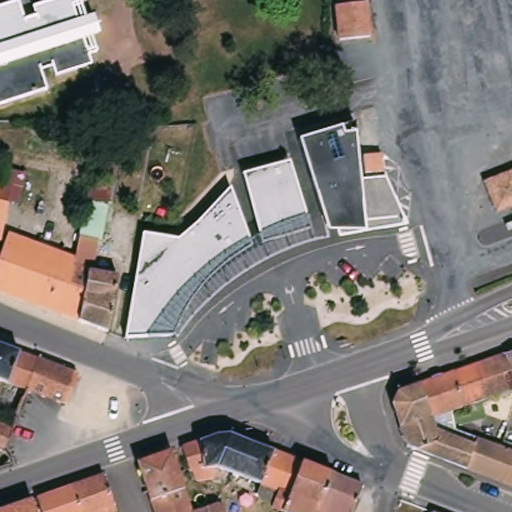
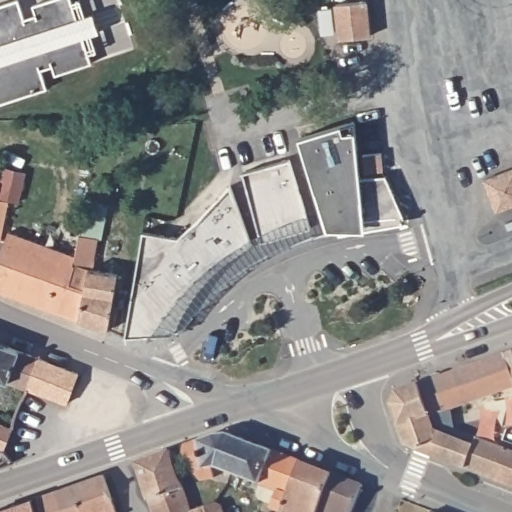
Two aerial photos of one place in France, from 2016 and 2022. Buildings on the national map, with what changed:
unchanged [(26,4),(42,0),(67,0),(68,1),(72,0),(76,0),(81,14),(87,12),(95,33),(87,35),(92,51),(84,54),(87,64),(50,76),(47,68),(37,71),(44,89),(0,102),(0,4),(12,0),(14,0),(16,8),(19,17),(30,14),(26,4)]
unchanged [(336,5),(366,1),(370,36),(340,39),(336,5)]
unchanged [(357,120),(360,177),(386,175),(408,223),(343,235),(340,229),(328,229),(300,138),(357,120)]
unchanged [(179,238),(234,184),(250,239),(260,235),(244,170),(292,158),(310,225),(290,230),(270,237),(248,243),(233,253),(220,264),(207,278),(197,289),(189,303),(181,315),(175,333),(126,334),(144,232),(179,238)]
unchanged [(496,213),(493,205),(483,179),(512,169),(512,206),(496,213)]
unchanged [(0,200),(0,170),(19,174),(12,203),(0,200)]
unchanged [(0,203),(4,204),(0,219),(0,203)]
unchanged [(510,232),(507,224),(512,222),(512,231),(510,232)]
unchanged [(84,259),(74,320),(0,295),(0,243),(0,242),(5,232),(68,255),(84,259)]
unchanged [(84,259),(68,255),(72,235),(93,239),(88,270),(112,274),(102,332),(74,320),(84,259)]
unchanged [(0,380),(0,346),(33,358),(70,373),(58,403),(21,389),(0,380)]
unchanged [(511,386),(506,373),(500,353),(512,349),(512,386),(511,386)]
unchanged [(493,481),(401,446),(387,403),(388,401),(392,391),(413,383),(448,371),(450,370),(470,364),(500,353),(506,373),(511,386),(447,409),(450,429),(512,452),(512,488),(493,481)]
unchanged [(252,493),(255,484),(212,466),(207,467),(210,478),(194,481),(190,479),(187,472),(185,471),(176,447),(183,444),(211,434),(224,433),(225,433),(266,449),(268,450),(297,461),(293,471),(291,476),(277,512),(267,508),(270,503),(256,498),(252,493)]
unchanged [(184,500),(149,512),(132,462),(166,450),(184,500)]
unchanged [(277,512),(291,476),(293,471),(297,461),(328,473),(357,484),(347,512),(279,512),(277,512)]
unchanged [(67,484),(99,474),(112,512),(76,512),(67,484)]
unchanged [(67,484),(76,512),(36,512),(31,497),(67,484)]
unchanged [(0,508),(26,499),(31,512),(0,512),(0,508)]
unchanged [(184,500),(187,511),(187,512),(149,512),(184,500)]
unchanged [(213,503),(216,504),(218,512),(187,512),(187,511),(213,503)]
unchanged [(432,511),(435,512),(432,512),(432,511)]

